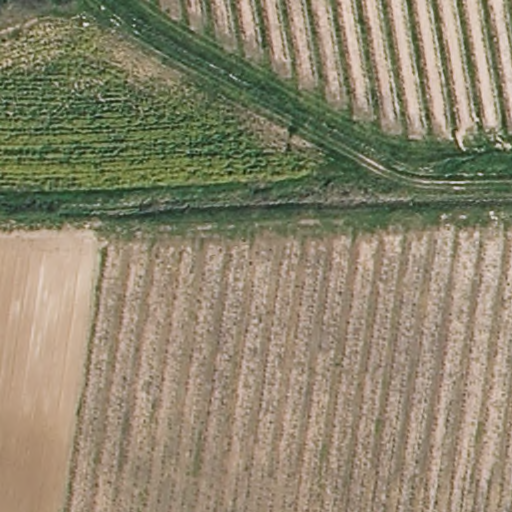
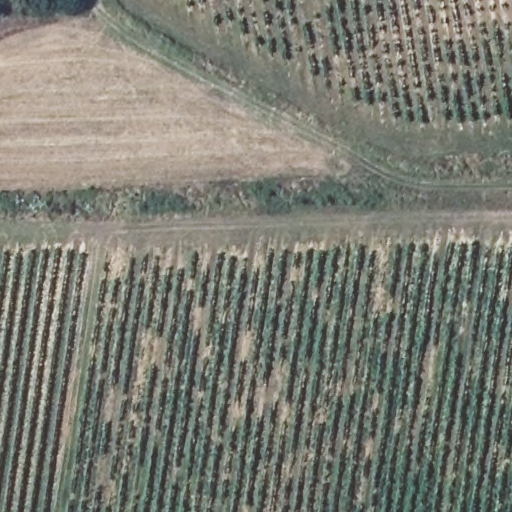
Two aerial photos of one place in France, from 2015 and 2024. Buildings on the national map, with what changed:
[]

